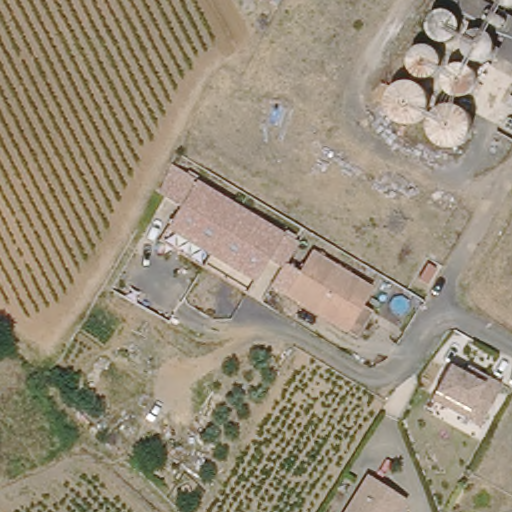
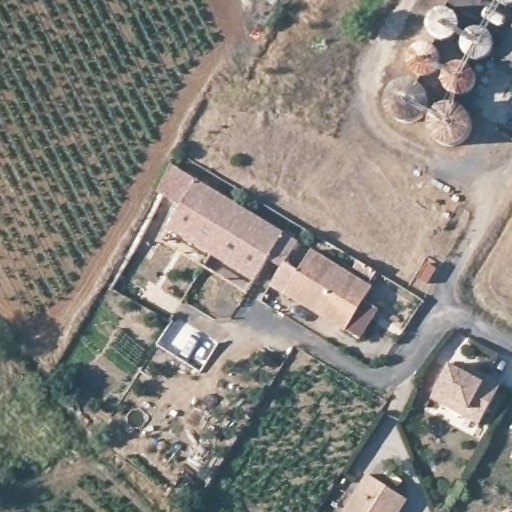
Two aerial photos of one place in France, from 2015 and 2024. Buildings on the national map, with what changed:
unchanged [(500,11),(490,28),(442,3),(444,0),(480,0),(500,11)]
unchanged [(438,16),(442,16),(447,18),(450,21),(452,25),(453,30),(452,34),(450,38),(445,41),(440,42),(436,42),(432,40),(429,37),(427,33),(426,28),(427,24),(430,20),(434,17),(438,16)]
unchanged [(497,55),(512,28),(512,64),(497,55)]
unchanged [(466,35),(470,33),(475,32),(479,33),(483,35),(486,39),(487,43),(487,48),(486,52),(482,56),(477,58),(472,58),(469,57),(465,54),(462,50),(461,46),(462,41),(462,38),(466,35)]
unchanged [(418,46),(423,47),(427,49),(431,53),(434,57),(435,62),(434,67),(431,71),(427,75),(420,77),(415,77),(410,76),(407,73),(404,68),(403,64),(403,59),(405,54),(408,50),(412,48),(413,47),(418,46)]
unchanged [(454,62),(459,62),(463,65),(467,68),(469,72),(470,77),(469,82),(467,87),(464,90),(456,93),(451,93),(446,91),(442,88),(440,84),(438,79),(439,74),(440,69),(444,66),(447,63),(449,62),(454,62)]
unchanged [(394,82),(399,79),(405,77),(410,78),(416,79),(422,82),(425,87),(428,92),(430,98),(429,103),(427,109),(424,114),(415,120),(409,121),(403,121),(397,119),(392,115),(389,111),(386,105),(385,100),(386,94),(388,88),(390,86),(394,82)]
unchanged [(436,104),(441,101),(447,100),(452,100),(459,101),(464,104),(467,109),(470,114),(472,120),(471,126),(469,131),(466,136),(457,142),(450,143),(445,143),(439,141),(435,137),(430,133),(428,128),(427,122),(428,116),(430,111),(432,108),(436,104)]
unchanged [(256,279),(167,226),(178,208),(156,195),(172,166),(195,180),(285,234),(256,279)]
unchanged [(331,321),(282,291),(307,251),(368,287),(359,302),(343,328),(331,321)]
unchanged [(430,406),(447,367),(498,393),(477,429),(430,406)]
unchanged [(408,498),(399,512),(341,512),(370,472),(408,498)]

